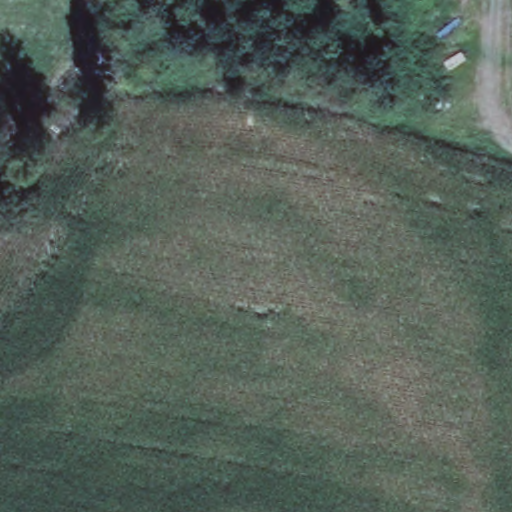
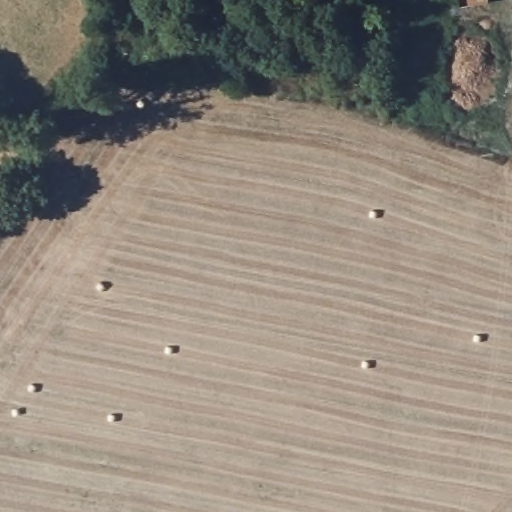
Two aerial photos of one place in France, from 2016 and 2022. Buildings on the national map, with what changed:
[]

